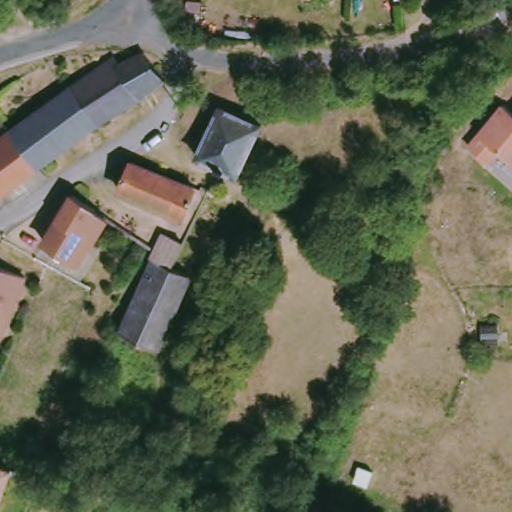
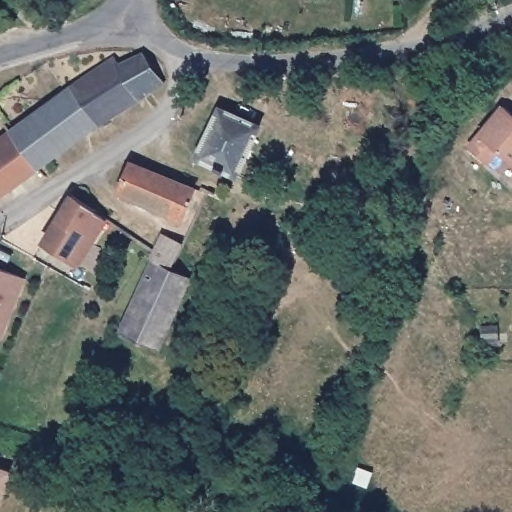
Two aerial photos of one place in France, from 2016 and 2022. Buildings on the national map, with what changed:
unchanged [(97,125),(37,168),(9,131),(69,87),(115,57),(119,65),(144,53),(165,82),(97,125)]
unchanged [(512,112),(512,161),(498,150),(488,162),(469,147),(504,105),(512,112)]
unchanged [(219,107),(261,125),(237,176),(196,156),(219,107)]
unchanged [(0,138),(9,131),(37,168),(0,195),(0,138)]
unchanged [(138,204),(139,200),(119,191),(131,162),(194,187),(182,218),(151,204),(148,209),(138,204)]
unchanged [(73,194),(96,210),(95,212),(106,219),(78,263),(43,242),(73,194)]
unchanged [(158,351),(119,332),(153,260),(151,258),(154,252),(153,252),(163,234),(173,239),(183,244),(172,268),(191,277),(158,351)]
unchanged [(4,337),(0,336),(0,265),(29,277),(4,337)]
unchanged [(481,341),(479,326),(494,323),(497,341),(494,342),(482,343),(481,341)]
unchanged [(0,468),(9,472),(0,498),(0,468)]

